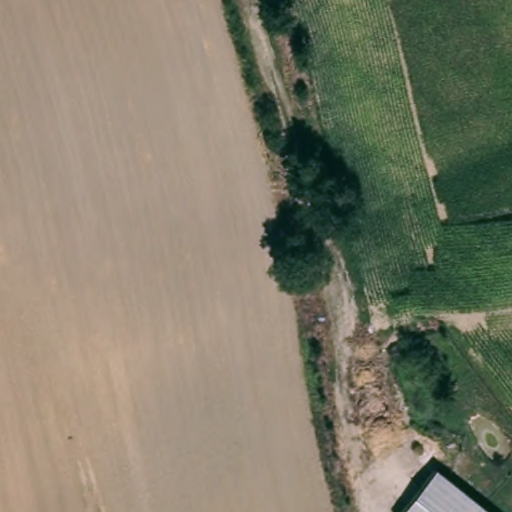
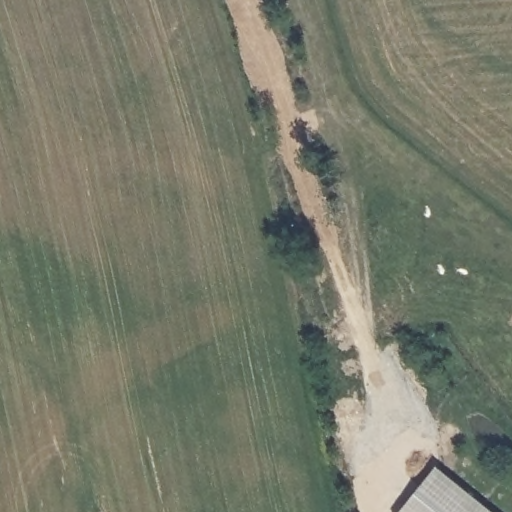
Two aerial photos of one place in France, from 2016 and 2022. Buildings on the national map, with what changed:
unchanged [(427,467),(447,482),(486,512),(392,512),(427,467)]

